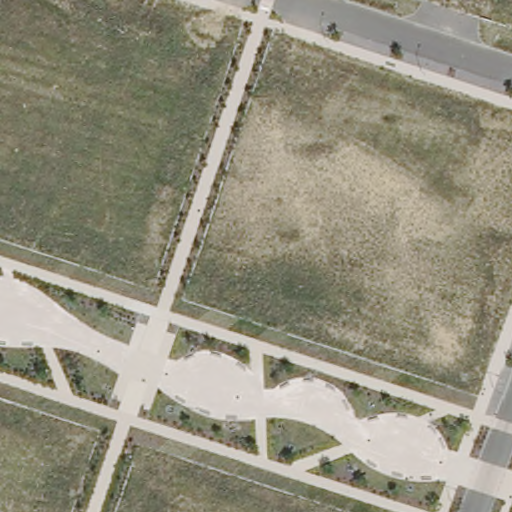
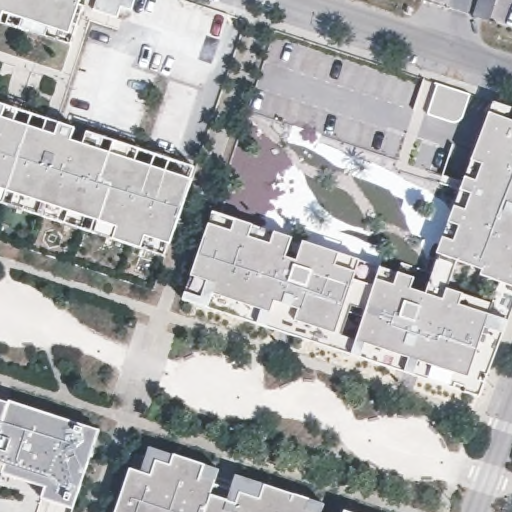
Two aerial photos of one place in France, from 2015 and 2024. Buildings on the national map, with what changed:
new [(0,21),(0,0),(82,0),(69,43),(0,21)]
new [(134,0),(131,10),(121,7),(117,18),(93,10),(96,0),(134,0)]
new [(432,82),(465,93),(458,114),(453,119),(449,121),(447,120),(423,113),(432,82)]
new [(291,335),(275,330),(254,324),(223,314),(206,308),(183,300),(187,287),(208,225),(212,214),(235,221),(252,227),(273,235),(291,241),(285,260),(295,264),(302,244),(327,253),(338,257),(359,264),(379,271),(395,277),(412,282),(427,287),(440,250),(437,249),(443,232),(448,217),(454,201),(459,186),(469,189),(492,197),(495,187),(473,178),(463,175),(469,158),(484,114),(489,100),(512,108),(512,309),(507,321),(487,376),(479,397),(465,392),(413,376),(398,371),(366,360),(338,351),(307,341),(291,335)]
new [(73,128),(69,144),(81,147),(89,133),(181,163),(175,178),(186,182),(167,244),(147,237),(142,252),(113,242),(117,230),(0,190),(0,105),(73,128)]
unchanged [(97,434),(71,509),(45,499),(48,491),(8,477),(8,474),(0,471),(0,402),(97,434)]
new [(131,470),(140,473),(148,448),(219,470),(210,498),(229,503),(236,476),(325,505),(322,512),(116,512),(131,470)]
new [(344,511),(348,512),(343,512),(344,511)]

